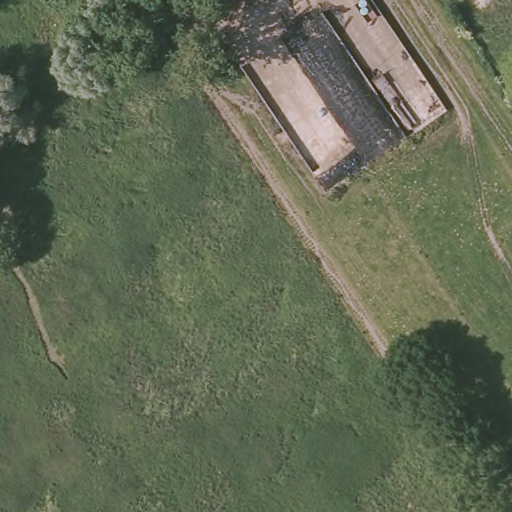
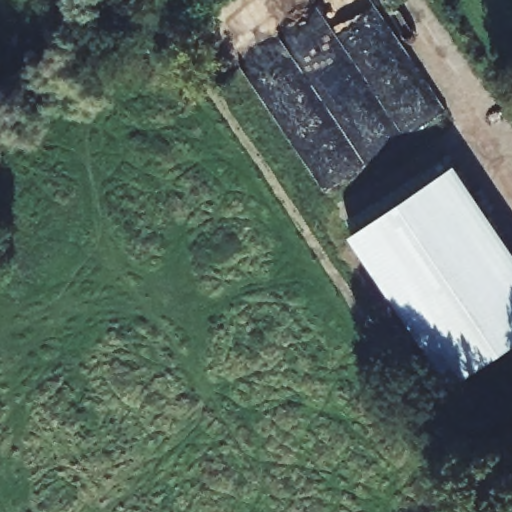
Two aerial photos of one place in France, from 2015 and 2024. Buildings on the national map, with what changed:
new [(512,240),(512,345),(455,384),(352,232),(459,160),(512,240)]

